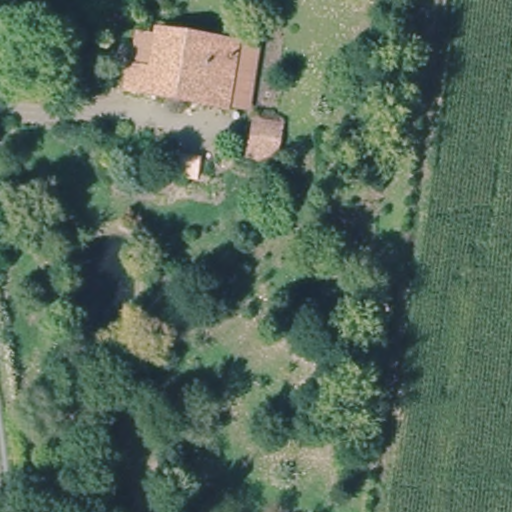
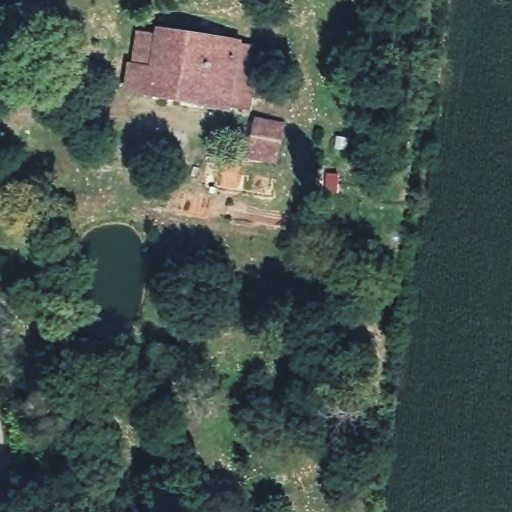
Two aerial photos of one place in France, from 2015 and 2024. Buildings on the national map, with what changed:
unchanged [(124,80),(132,55),(143,19),(162,24),(259,51),(249,91),(242,112),(133,86),(124,80)]
unchanged [(255,116),(281,122),(275,155),(251,149),(255,116)]

